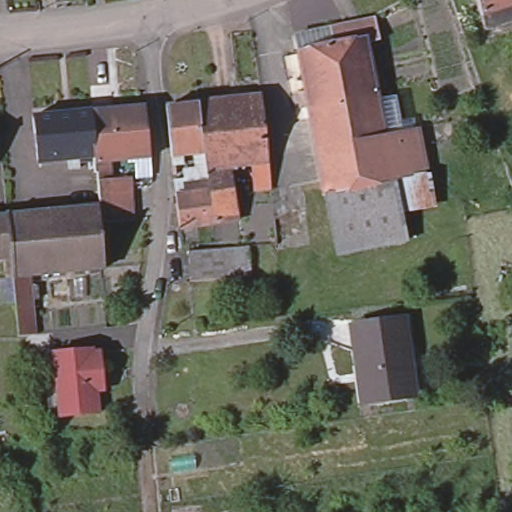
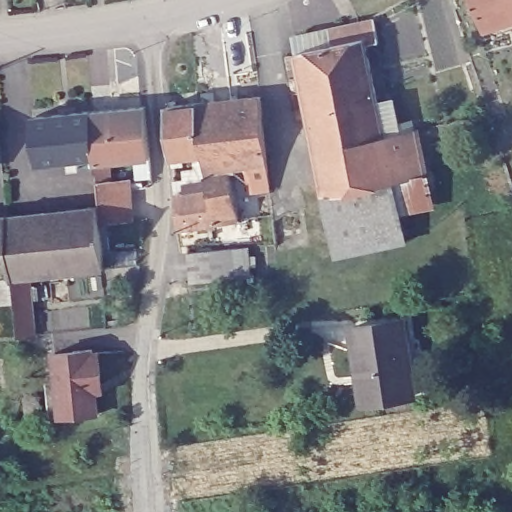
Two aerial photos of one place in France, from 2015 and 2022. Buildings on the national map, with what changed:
unchanged [(485,32),(474,0),(512,0),(512,24),(485,32)]
unchanged [(295,35),(331,27),(344,24),(356,21),(376,17),(380,40),(365,42),(376,93),(309,107),(298,50),(295,35)]
unchanged [(393,178),(391,179),(326,193),(309,107),(376,93),(384,133),(416,127),(418,138),(425,172),(393,178)]
unchanged [(237,170),(231,102),(261,99),(266,145),(269,165),(271,185),(271,191),(254,193),(251,168),(237,170)]
unchanged [(216,226),(181,231),(178,205),(177,198),(212,193),(210,177),(210,174),(209,171),(207,156),(200,105),(231,102),(237,170),(232,171),(238,211),(239,222),(216,226)]
unchanged [(166,110),(200,105),(207,156),(173,160),(166,110)]
unchanged [(116,111),(140,109),(145,159),(120,162),(116,111)]
unchanged [(3,219),(48,214),(95,210),(95,208),(96,208),(92,165),(92,162),(91,161),(87,114),(116,111),(120,162),(105,164),(106,183),(122,181),(125,181),(128,207),(128,222),(97,225),(101,270),(9,279),(1,280),(0,275),(0,219),(3,219)]
unchanged [(28,120),(87,114),(91,161),(34,166),(28,120)]
unchanged [(326,193),(391,179),(397,207),(332,219),(326,193)]
unchanged [(404,239),(339,253),(332,219),(397,207),(404,239)]
unchanged [(248,275),(189,278),(187,249),(246,245),(248,275)]
unchanged [(352,364),(358,363),(352,323),(402,316),(408,355),(422,353),(427,390),(412,392),(367,398),(357,400),(352,364)]
unchanged [(55,351),(93,348),(94,350),(100,350),(102,365),(103,381),(96,382),(99,411),(61,414),(57,372),(55,351)]
unchanged [(25,395),(26,395),(41,394),(42,408),(27,410),(25,395)]

